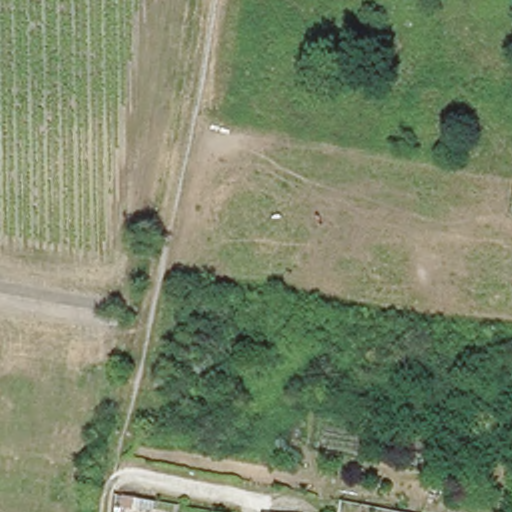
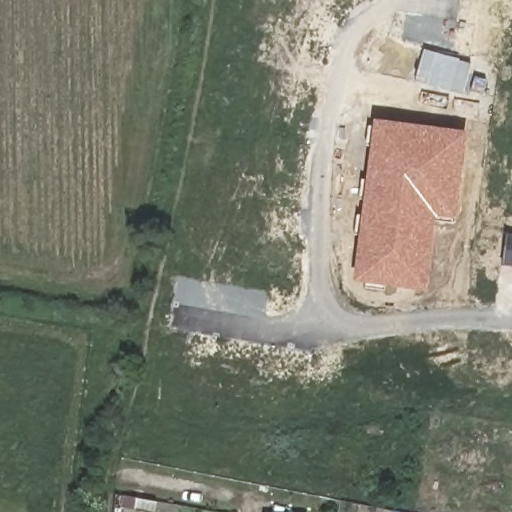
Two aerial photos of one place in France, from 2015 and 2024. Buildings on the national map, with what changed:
new [(467,131),(457,219),(452,218),(452,224),(434,222),(427,292),(354,281),(374,119),(467,131)]
new [(507,234),(512,234),(512,267),(502,266),(507,234)]
demolished [(441,503),(439,512),(408,512),(411,497),(441,503)]

